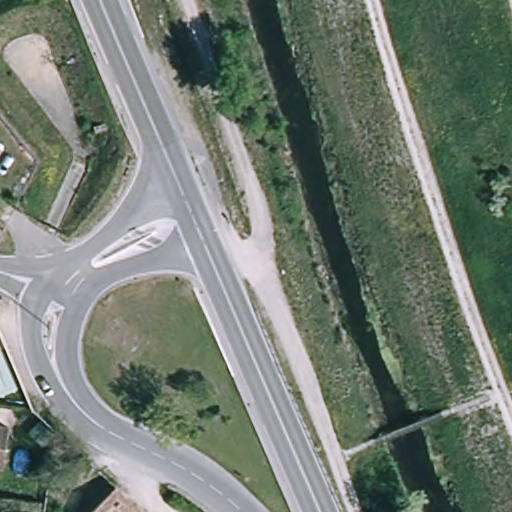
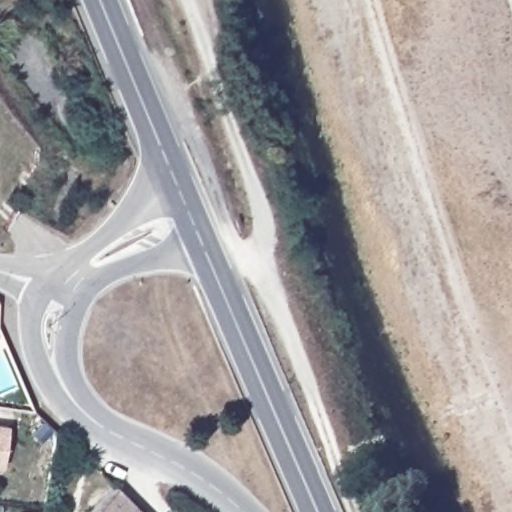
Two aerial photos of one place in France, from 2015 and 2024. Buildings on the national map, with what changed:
unchanged [(0,470),(0,430),(6,430),(0,470)]
unchanged [(141,512),(89,512),(115,486),(141,512)]

